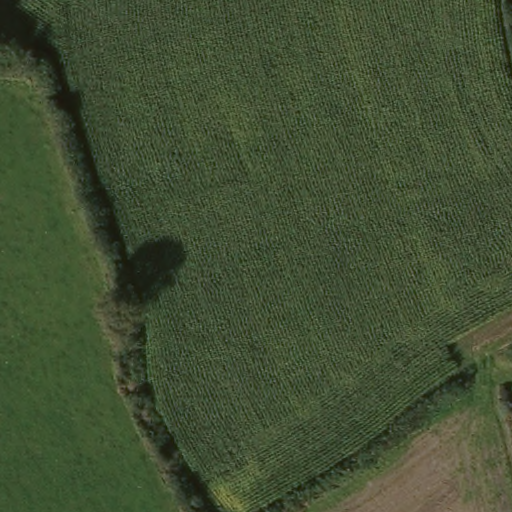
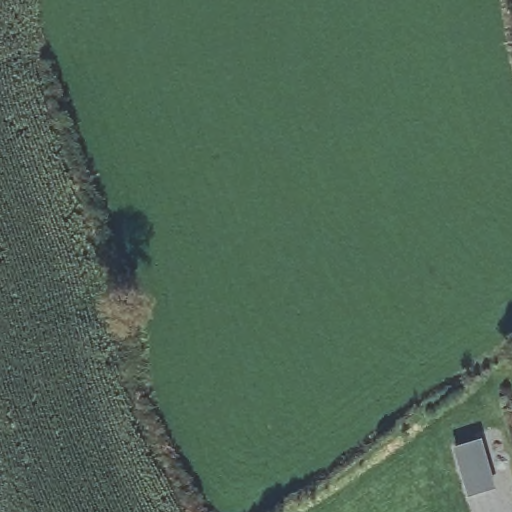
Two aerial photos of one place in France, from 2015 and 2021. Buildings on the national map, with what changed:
new [(494,490),(467,498),(452,449),(481,440),(494,490)]

